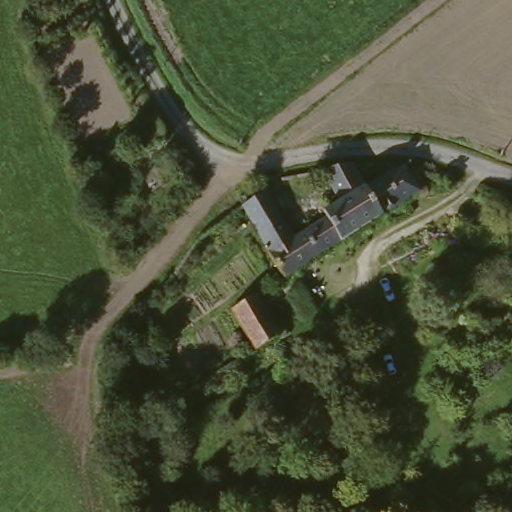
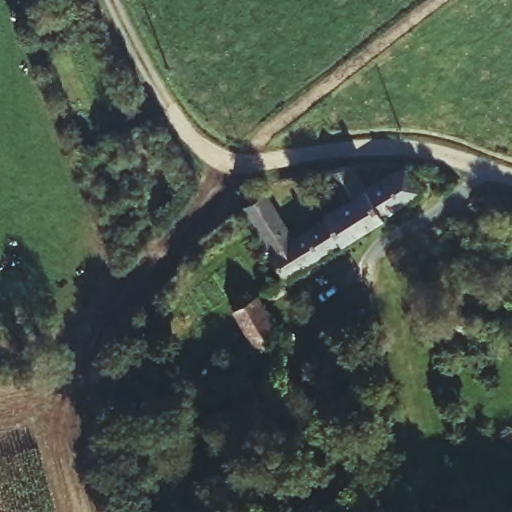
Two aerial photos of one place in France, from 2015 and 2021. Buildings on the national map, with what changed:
unchanged [(233,190),(235,188),(250,181),(259,195),(267,192),(293,233),(324,215),(322,212),(341,198),(322,168),(325,168),(352,163),(364,183),(391,167),(403,167),(418,190),(288,275),(245,206),(233,190)]
unchanged [(234,308),(256,295),(278,332),(278,334),(256,347),(256,346),(234,308)]

